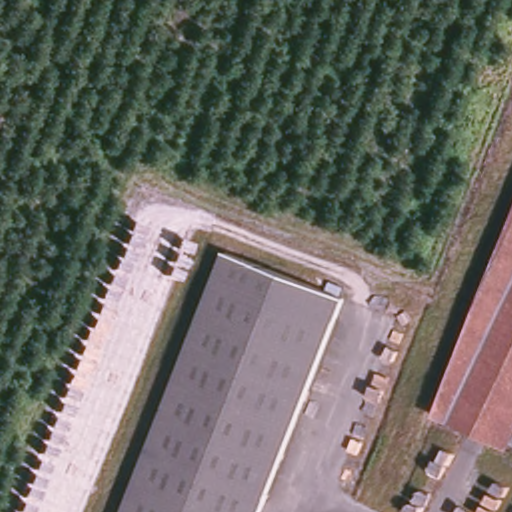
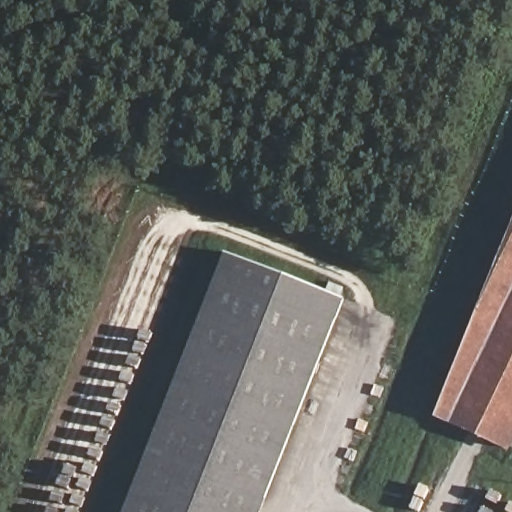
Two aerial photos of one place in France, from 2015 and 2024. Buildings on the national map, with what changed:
unchanged [(437,420),(512,230),(512,446),(508,454),(437,420)]
unchanged [(349,299),(257,512),(125,512),(238,251),(349,299)]

